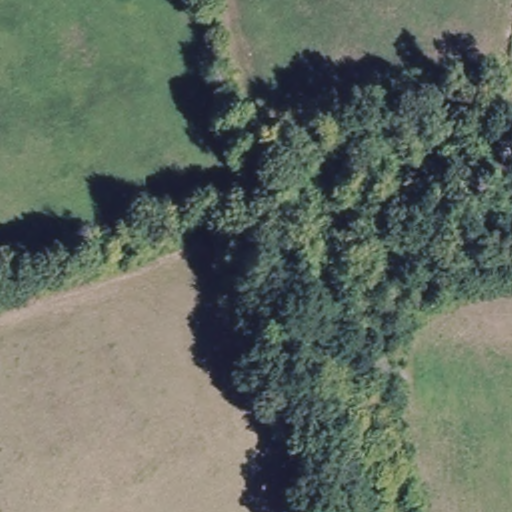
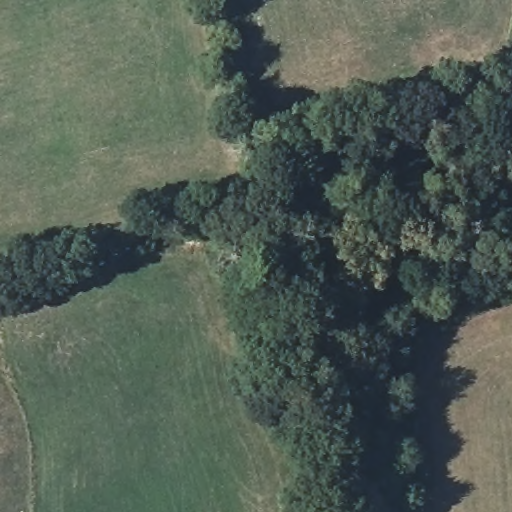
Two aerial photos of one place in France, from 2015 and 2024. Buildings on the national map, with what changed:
[]

